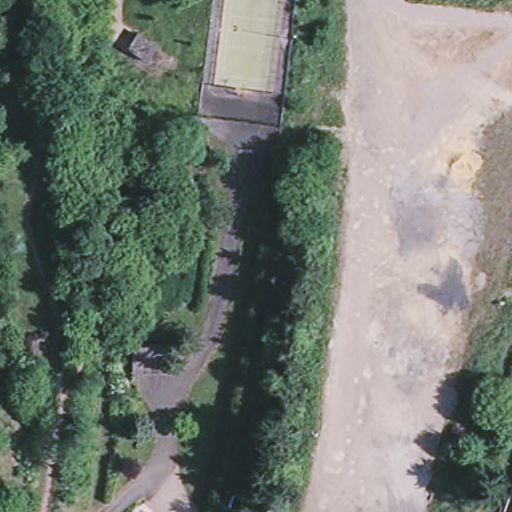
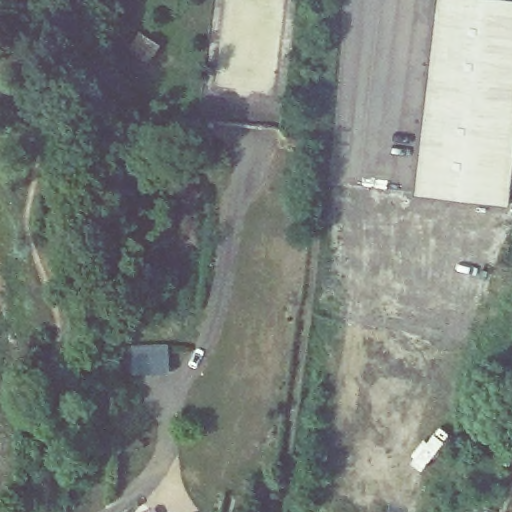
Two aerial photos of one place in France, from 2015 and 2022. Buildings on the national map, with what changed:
new [(512,0),(512,178),(509,204),(412,192),(435,0),(512,0)]
unchanged [(150,372),(132,371),(132,342),(151,342),(167,343),(166,372),(150,372)]

